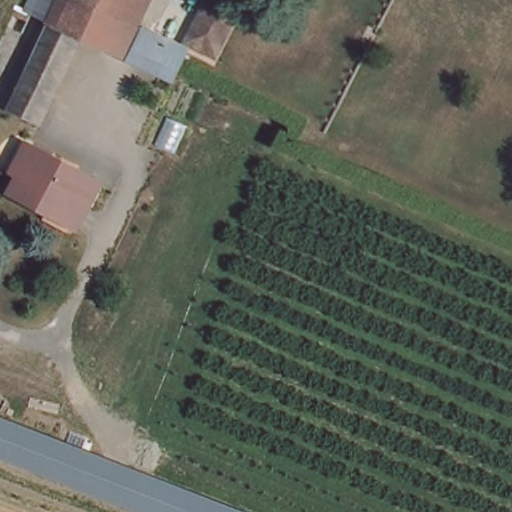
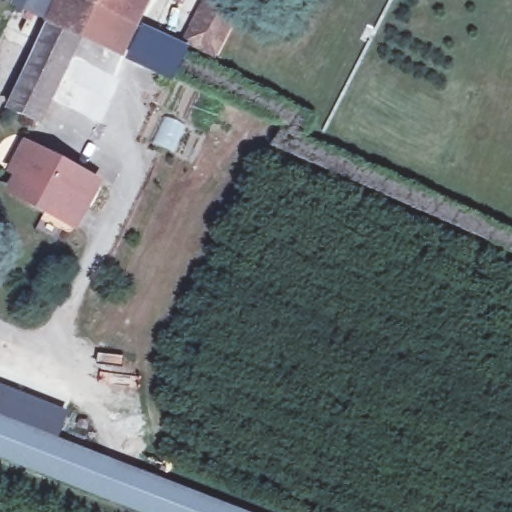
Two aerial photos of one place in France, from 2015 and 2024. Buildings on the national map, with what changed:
unchanged [(84,32),(45,101),(36,115),(7,99),(16,84),(50,22),(63,0),(146,0),(118,50),(84,32)]
unchanged [(21,0),(63,0),(50,22),(18,5),(21,0)]
unchanged [(245,0),(215,61),(196,52),(180,44),(202,0),(245,0)]
unchanged [(133,60),(149,33),(194,59),(178,86),(133,60)]
unchanged [(74,222),(66,217),(10,182),(20,165),(13,160),(28,136),(91,174),(99,179),(74,222)]
new [(0,419),(0,384),(68,412),(58,441),(0,419)]
unchanged [(247,512),(155,512),(0,453),(0,419),(247,512)]

